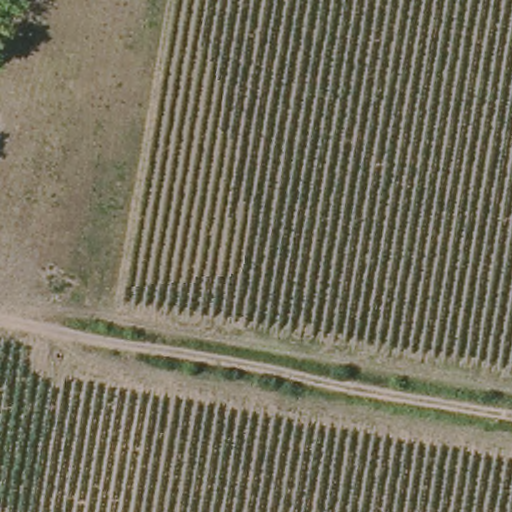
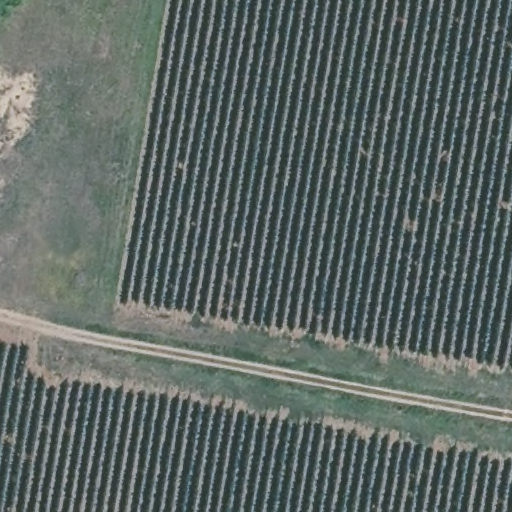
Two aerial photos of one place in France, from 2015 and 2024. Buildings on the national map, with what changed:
[]

